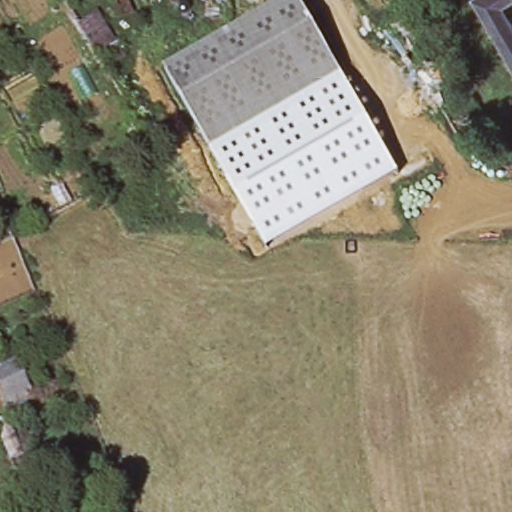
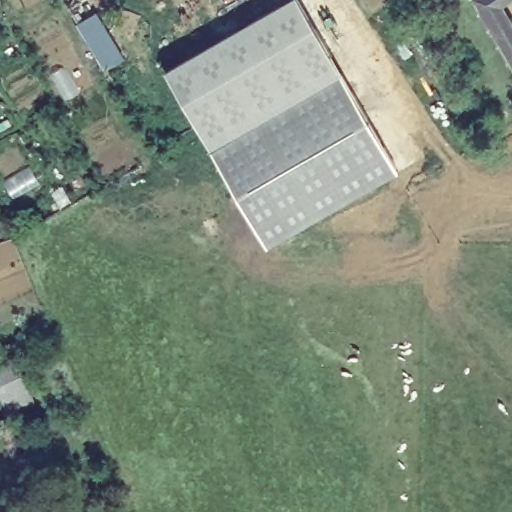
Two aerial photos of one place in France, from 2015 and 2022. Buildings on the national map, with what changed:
unchanged [(299,0),(400,172),(267,247),(166,71),(287,0),(299,0)]
unchanged [(512,0),(512,60),(477,0),(512,0)]
unchanged [(105,72),(103,72),(75,27),(94,16),(122,62),(105,72)]
unchanged [(8,406),(0,388),(0,357),(12,352),(32,395),(8,406)]
unchanged [(8,406),(26,445),(8,452),(0,433),(0,409),(8,406)]

